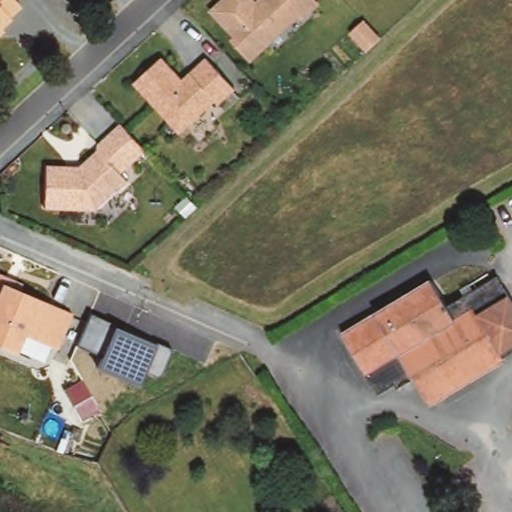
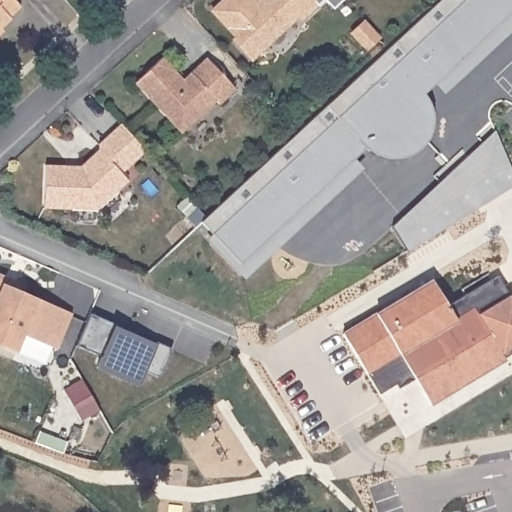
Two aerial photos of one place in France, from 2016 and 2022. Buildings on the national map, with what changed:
unchanged [(8,20),(11,21),(0,31),(0,0),(12,0),(21,10),(8,20)]
new [(434,86),(424,95),(431,106),(433,120),(432,131),(429,139),(422,148),(411,155),(403,158),(393,160),(383,158),(372,155),(365,149),(356,159),(364,168),(244,280),(206,239),(212,233),(202,222),(442,0),(512,0),(512,30),(442,95),(434,86)]
unchanged [(302,24),(299,20),(252,64),(208,13),(223,0),(253,0),(254,1),(256,0),(315,0),(319,6),(302,24)]
unchanged [(0,36),(0,31),(2,34),(0,36)]
unchanged [(234,91),(220,105),(218,103),(180,136),(134,85),(162,59),(182,79),(207,60),(234,91)]
unchanged [(147,154),(122,178),(128,184),(99,209),(95,213),(43,211),(45,166),(81,168),(100,153),(99,152),(96,148),(120,126),(147,154)]
new [(512,169),(512,187),(407,252),(392,227),(495,131),(512,169)]
unchanged [(73,315),(59,351),(24,337),(18,353),(0,346),(0,275),(26,285),(23,294),(73,315)]
unchanged [(506,358),(507,359),(431,405),(416,379),(399,389),(396,385),(380,395),(344,334),(434,280),(449,306),(499,277),(512,297),(512,354),(506,358)]
unchanged [(161,373),(156,377),(145,371),(139,387),(95,368),(101,355),(76,346),(89,315),(114,327),(157,345),(171,350),(161,373)]
new [(83,380),(100,411),(81,421),(64,390),(83,380)]

